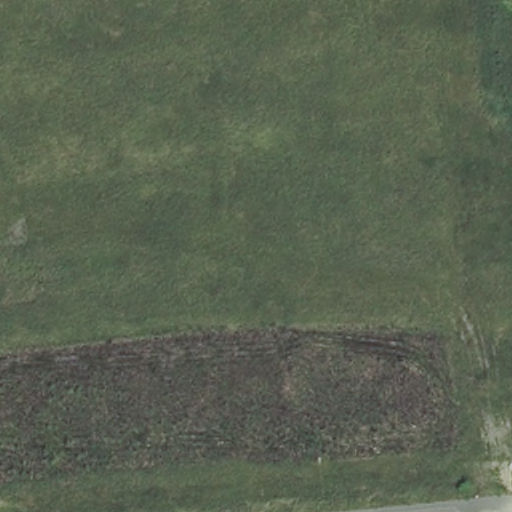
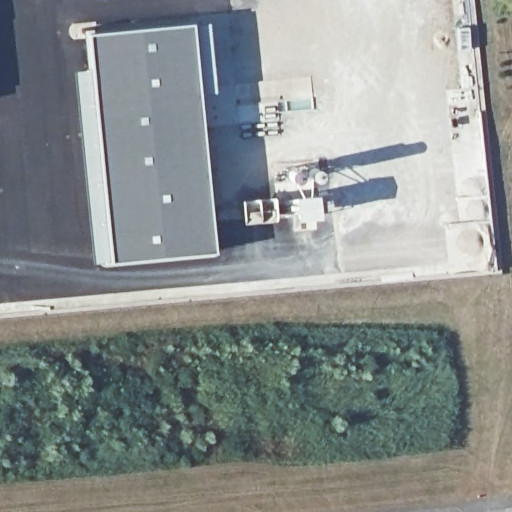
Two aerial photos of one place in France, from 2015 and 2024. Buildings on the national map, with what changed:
new [(194,91),(209,249),(107,259),(89,261),(72,69),(88,66),(85,32),(206,21),(213,89),(194,91)]

